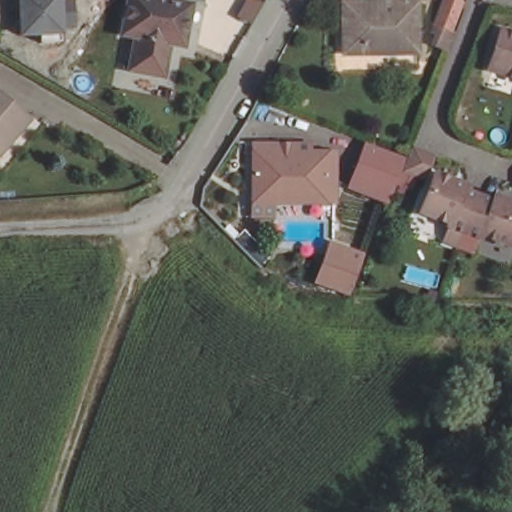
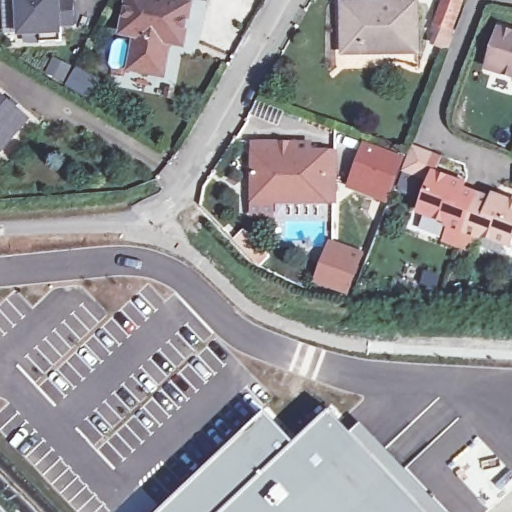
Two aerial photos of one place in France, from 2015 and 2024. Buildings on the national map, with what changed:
new [(75,26),(64,27),(64,36),(60,36),(61,41),(42,43),(42,36),(20,37),(17,0),(74,0),(75,26)]
unchanged [(140,34),(122,33),(126,0),(188,0),(184,39),(170,38),(167,69),(135,66),(140,34)]
unchanged [(419,53),(347,55),(345,5),(385,4),(385,0),(416,0),(419,53)]
unchanged [(449,43),(431,37),(443,3),(460,10),(449,43)]
unchanged [(487,71),(499,32),(512,36),(512,79),(487,71)]
unchanged [(10,159),(0,151),(0,95),(37,123),(10,159)]
unchanged [(429,152),(421,173),(401,166),(409,144),(429,152)]
new [(368,149),(402,161),(390,195),(386,200),(354,189),(357,183),(368,149)]
unchanged [(328,198),(254,201),(254,152),(327,150),(328,198)]
unchanged [(442,235),(447,221),(445,220),(446,218),(417,208),(430,169),(460,180),(459,185),(489,195),(490,190),(512,198),(512,227),(507,239),(478,229),(477,232),(461,226),(456,240),(442,235)]
unchanged [(329,202),(330,220),(253,223),(252,202),(329,202)]
new [(247,235),(274,261),(265,271),(238,245),(247,235)]
new [(354,292),(334,285),(324,281),(336,246),(347,249),(367,256),(354,292)]
new [(297,443),(332,410),(352,432),(426,512),(160,512),(267,411),(297,443)]
new [(448,512),(426,512),(352,432),(361,423),(448,512)]
new [(0,512),(0,501),(11,512),(0,512)]

